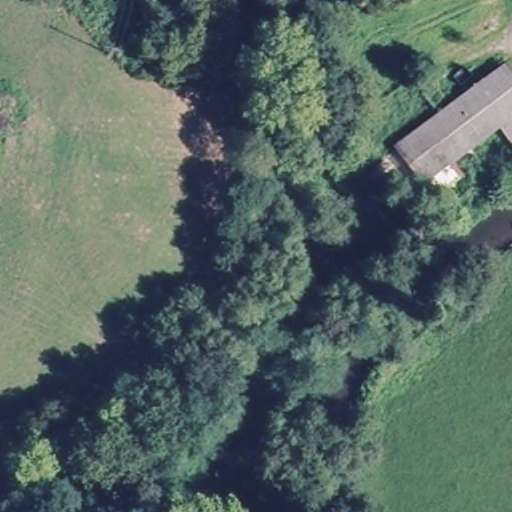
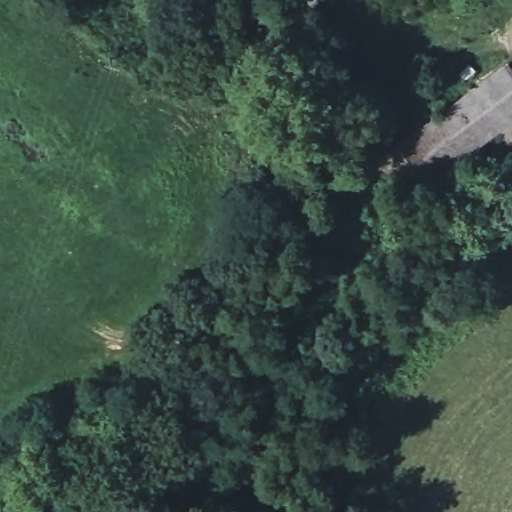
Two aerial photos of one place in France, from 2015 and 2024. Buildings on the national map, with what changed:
unchanged [(512,79),(512,132),(503,138),(496,128),(415,184),(390,147),(504,68),(512,79)]

